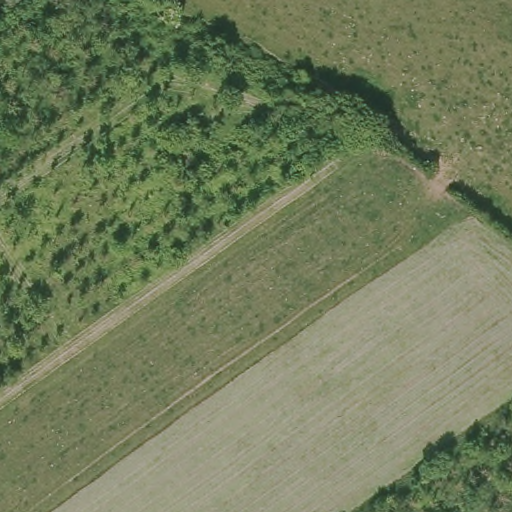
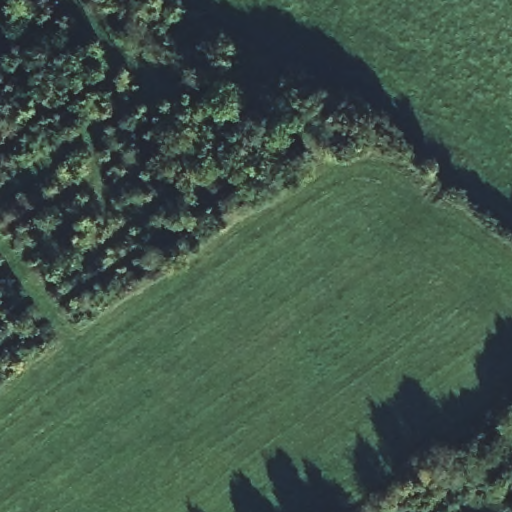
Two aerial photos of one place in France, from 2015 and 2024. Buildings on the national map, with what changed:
[]

